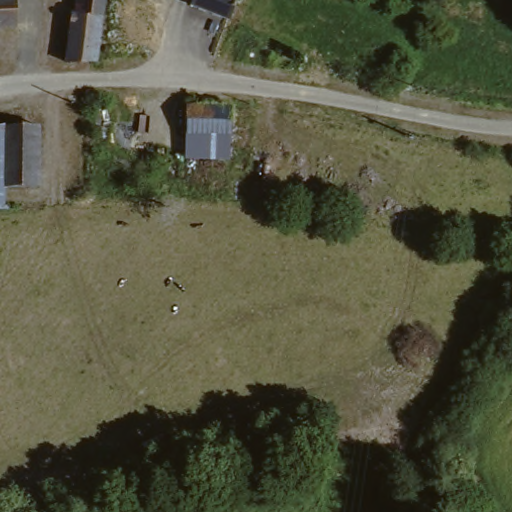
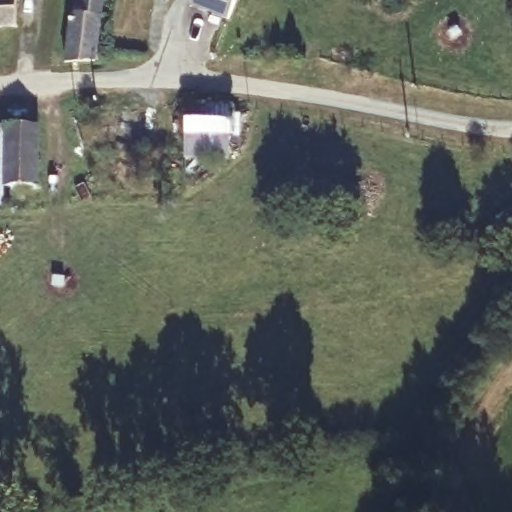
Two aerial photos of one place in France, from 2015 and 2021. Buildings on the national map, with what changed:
unchanged [(0,0),(14,0),(15,24),(0,24),(0,0)]
unchanged [(69,59),(75,10),(78,10),(79,0),(109,0),(100,57),(69,59)]
unchanged [(191,0),(234,0),(226,21),(189,5),(191,0)]
unchanged [(181,135),(181,112),(240,113),(240,145),(233,145),(225,138),(225,155),(180,152),(181,135)]
unchanged [(4,205),(2,127),(36,126),(38,205),(4,205)]
unchanged [(0,127),(2,127),(4,205),(0,205),(0,127)]

